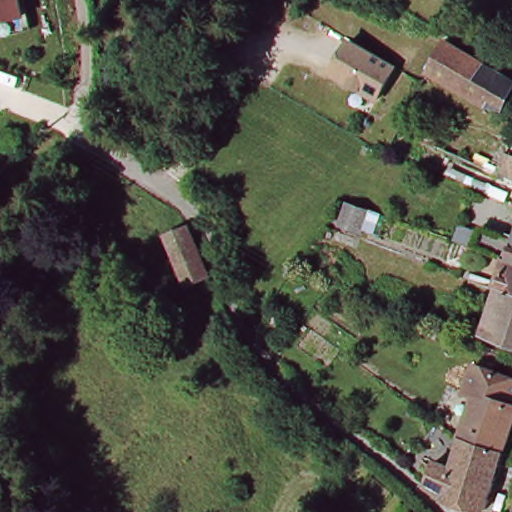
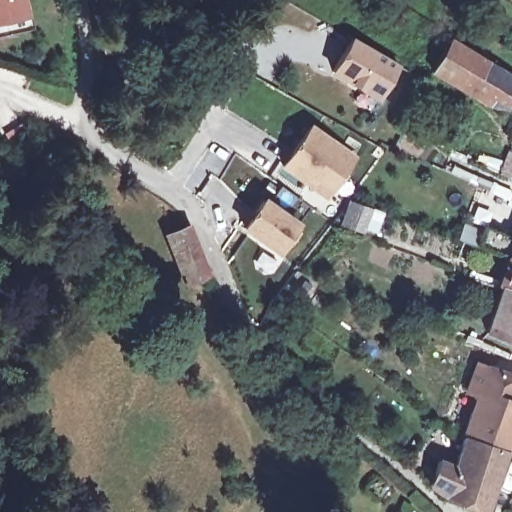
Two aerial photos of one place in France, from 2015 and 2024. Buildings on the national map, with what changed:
unchanged [(26,31),(20,33),(0,38),(0,0),(19,0),(26,31)]
unchanged [(400,65),(399,67),(380,99),(335,72),(354,40),(355,39),(400,65)]
unchanged [(433,74),(452,40),(501,67),(482,102),(433,74)]
unchanged [(501,67),(512,74),(512,109),(482,102),(501,67)]
new [(280,167),(310,125),(358,155),(328,200),(280,167)]
unchanged [(507,175),(503,174),(506,167),(512,169),(512,177),(507,175)]
new [(280,256),(241,230),(264,199),(301,224),(280,256)]
unchanged [(375,210),(366,235),(344,228),(352,202),(375,210)]
unchanged [(209,275),(186,285),(167,234),(188,225),(209,275)]
unchanged [(496,252),(460,240),(465,225),(486,232),(488,226),(512,235),(512,258),(496,252)]
unchanged [(352,260),(343,285),(312,275),(321,249),(352,260)]
unchanged [(485,333),(502,287),(512,261),(512,343),(485,333)]
unchanged [(472,389),(480,361),(512,373),(512,402),(472,389)]
unchanged [(488,512),(468,512),(452,508),(453,493),(428,487),(434,455),(456,460),(472,389),(512,402),(512,431),(488,512)]

